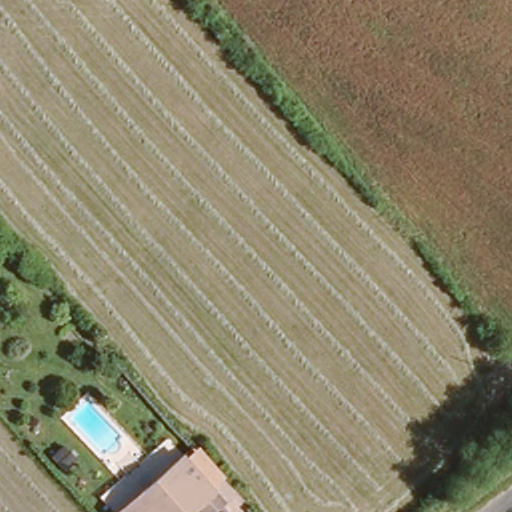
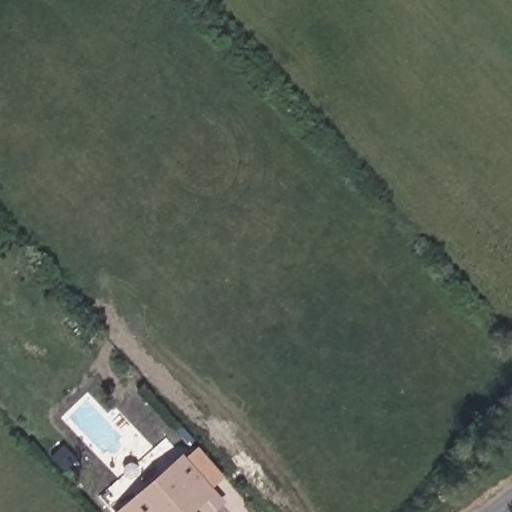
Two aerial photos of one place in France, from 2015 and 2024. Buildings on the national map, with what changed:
unchanged [(186,512),(111,512),(111,511),(182,453),(215,488),(186,512)]

